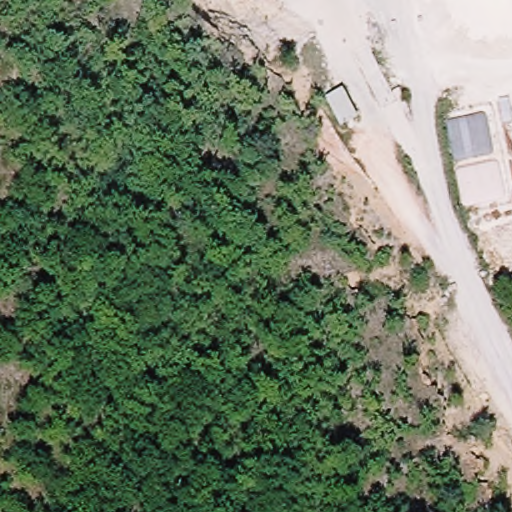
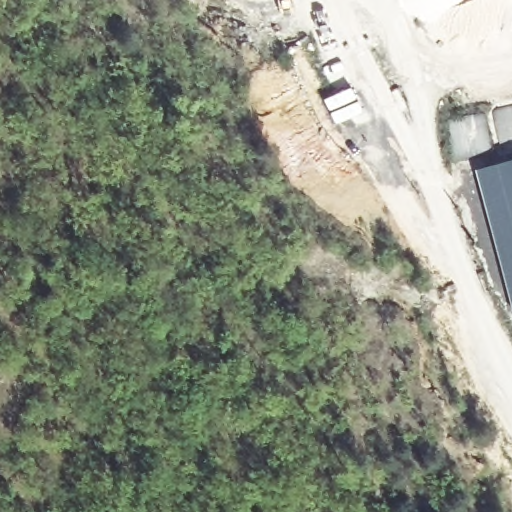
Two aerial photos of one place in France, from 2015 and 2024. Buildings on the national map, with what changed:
unchanged [(358,117),(338,128),(325,100),(343,86),(358,117)]
new [(512,300),(477,168),(512,159),(512,300)]

